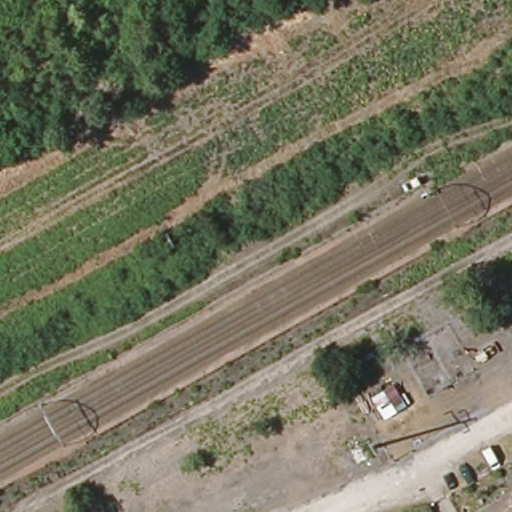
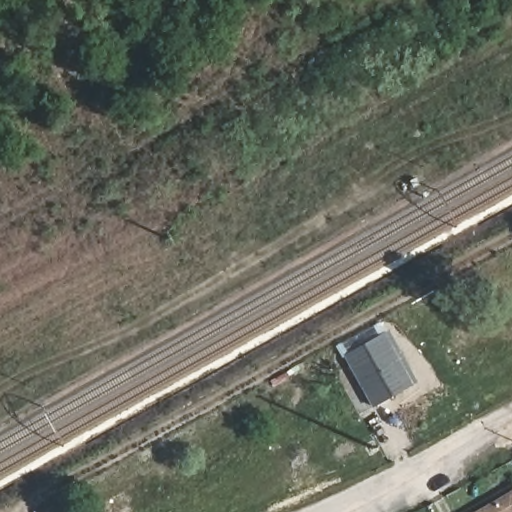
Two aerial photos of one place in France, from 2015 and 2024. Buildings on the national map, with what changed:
new [(392,333),(422,383),(378,410),(350,355),(392,333)]
unchanged [(512,512),(477,512),(512,492),(512,512)]

